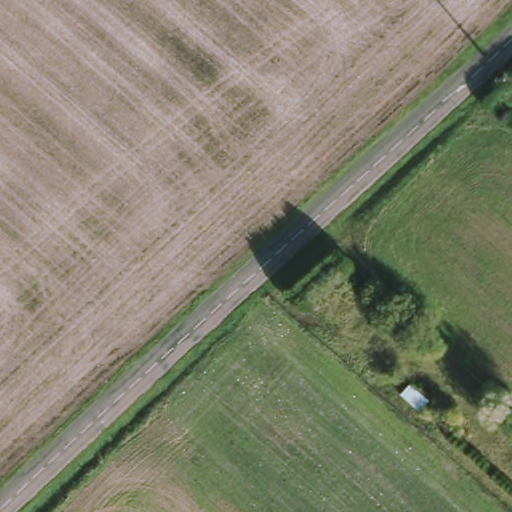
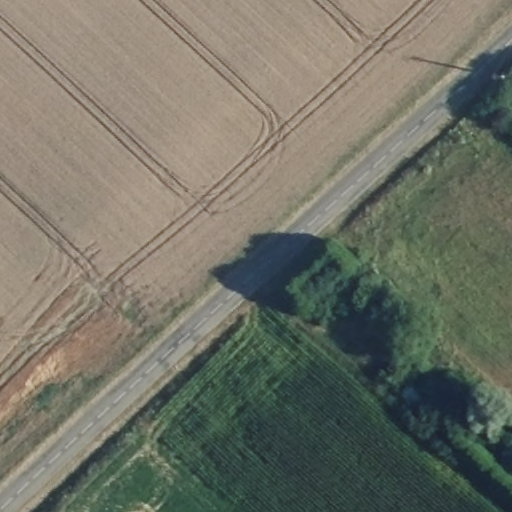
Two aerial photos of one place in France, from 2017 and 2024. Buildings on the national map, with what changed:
unchanged [(431,396),(421,407),(402,390),(412,378),(431,396)]

